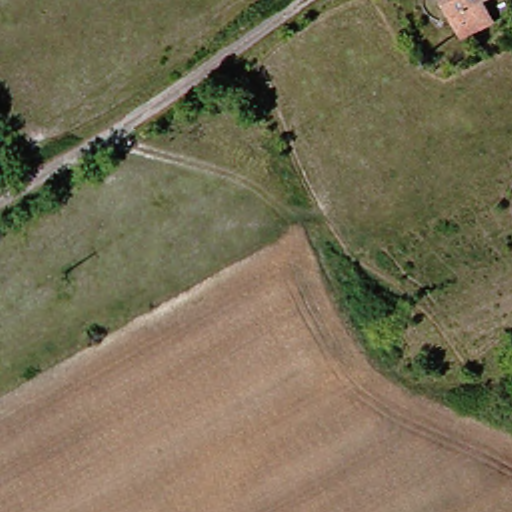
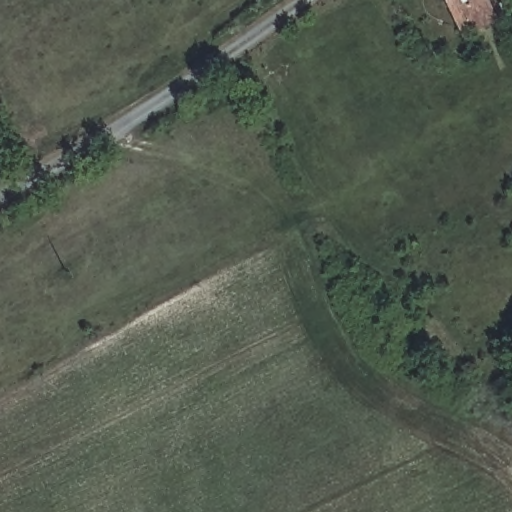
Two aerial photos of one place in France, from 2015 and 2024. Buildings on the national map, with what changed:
unchanged [(491,22),(468,32),(462,26),(453,31),(437,0),(480,0),(491,22)]

